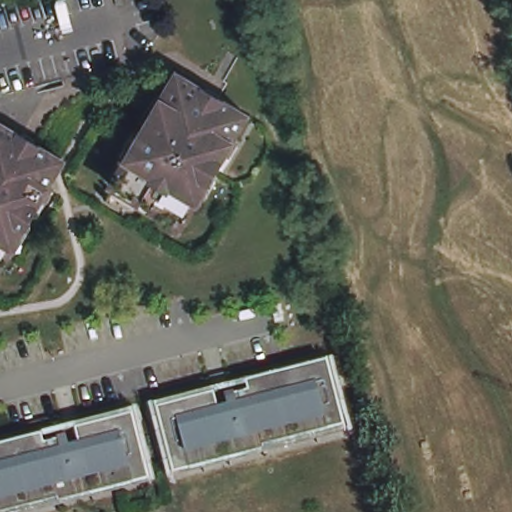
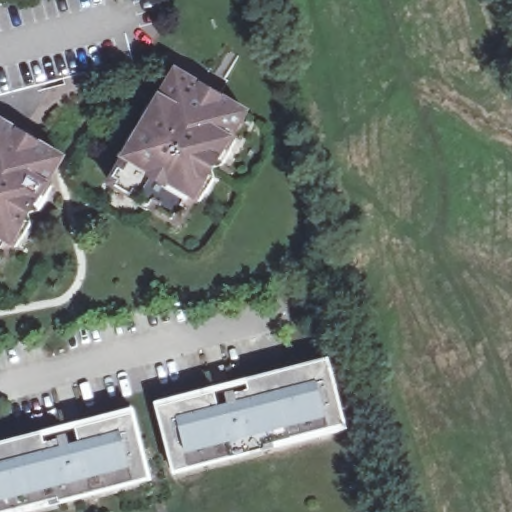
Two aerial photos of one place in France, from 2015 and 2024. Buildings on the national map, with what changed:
unchanged [(188,221),(112,176),(176,67),(201,81),(227,96),(252,110),(188,221)]
unchanged [(3,268),(0,266),(0,117),(20,128),(43,142),(68,157),(3,268)]
unchanged [(175,476),(175,471),(157,400),(329,358),(346,431),(347,435),(175,476)]
unchanged [(0,512),(0,442),(132,410),(150,482),(150,486),(42,512),(0,512)]

